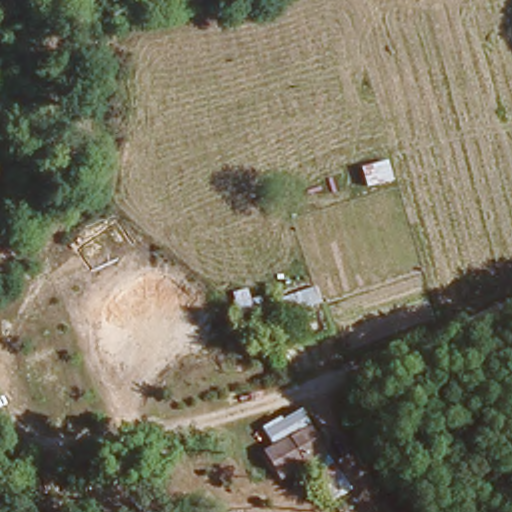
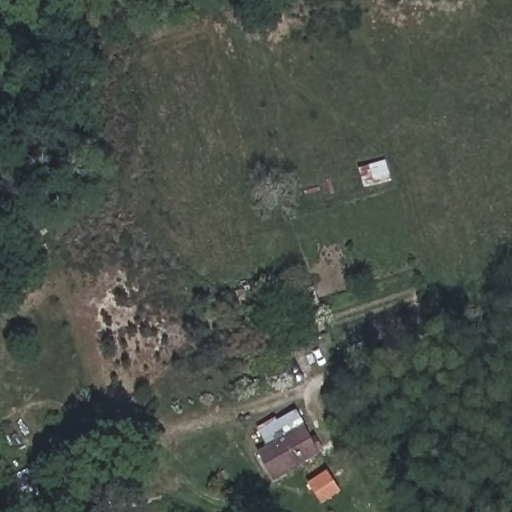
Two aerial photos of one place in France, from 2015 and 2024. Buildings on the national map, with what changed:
unchanged [(266,322),(237,328),(227,293),(245,288),(247,298),(258,295),(266,322)]
unchanged [(332,512),(327,502),(323,505),(296,456),(277,465),(256,428),(274,416),(277,419),(296,408),(344,492),(342,494),(349,505),(336,512),(332,512)]

